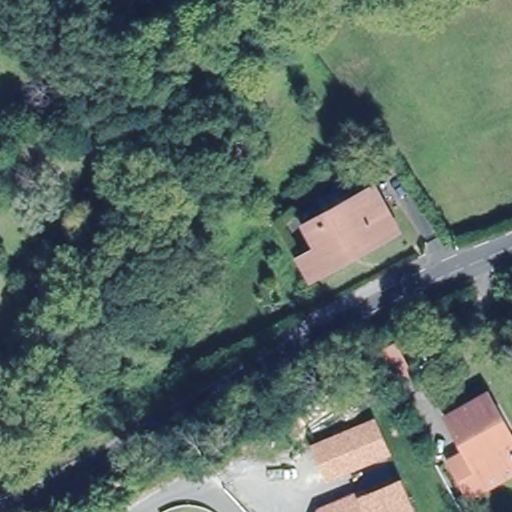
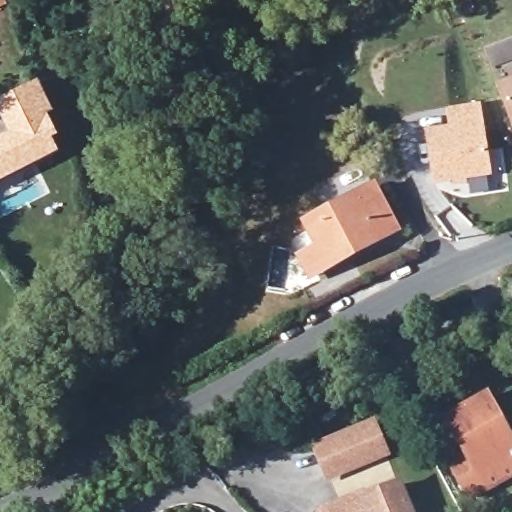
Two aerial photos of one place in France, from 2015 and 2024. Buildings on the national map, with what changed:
unchanged [(0,6),(0,0),(8,0),(0,6)]
new [(512,76),(512,128),(494,83),(512,76)]
new [(25,126),(10,133),(3,117),(0,111),(0,102),(32,87),(39,100),(46,115),(41,119),(50,137),(45,140),(52,154),(0,179),(0,144),(27,130),(25,126)]
new [(452,130),(450,112),(479,108),(489,174),(436,181),(429,133),(452,130)]
unchanged [(297,260),(315,250),(306,233),(322,224),(318,217),(369,190),(394,235),(327,272),(308,282),(297,260)]
unchanged [(393,392),(388,382),(375,358),(373,356),(393,345),(395,347),(408,371),(403,374),(408,383),(393,392)]
unchanged [(474,492),(453,456),(470,446),(450,412),(488,389),(512,431),(512,470),(492,481),(474,492)]
unchanged [(375,424),(387,453),(330,478),(317,448),(375,424)]
unchanged [(361,500),(395,485),(407,512),(320,512),(329,508),(359,495),(361,500)]

